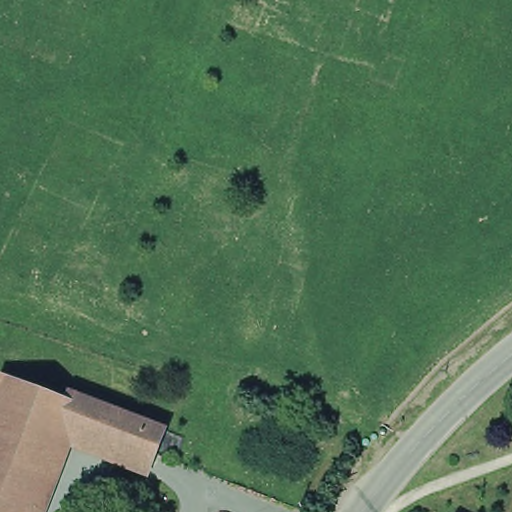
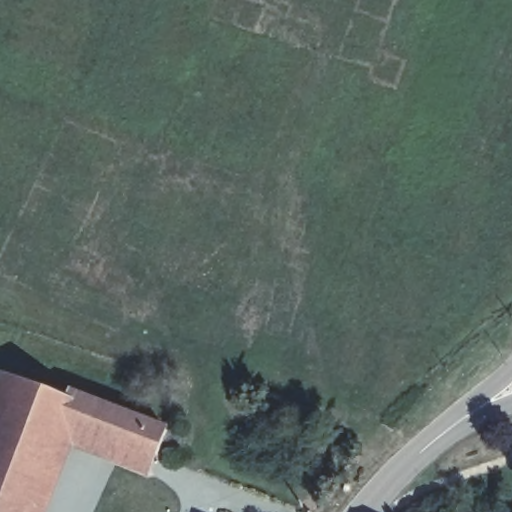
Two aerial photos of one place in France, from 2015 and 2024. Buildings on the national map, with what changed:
unchanged [(159,426),(146,459),(49,419),(5,402),(16,376),(19,369),(60,386),(159,426)]
unchanged [(49,419),(14,512),(0,512),(0,416),(5,402),(49,419)]

